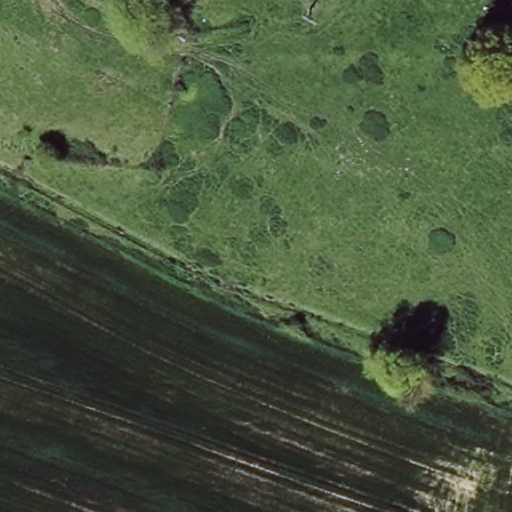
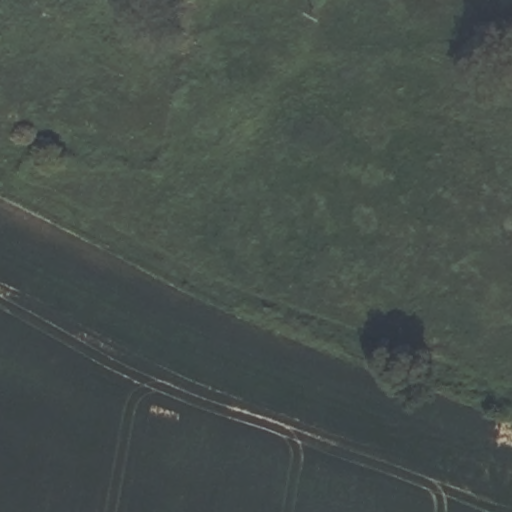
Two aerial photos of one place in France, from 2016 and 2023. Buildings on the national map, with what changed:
[]

